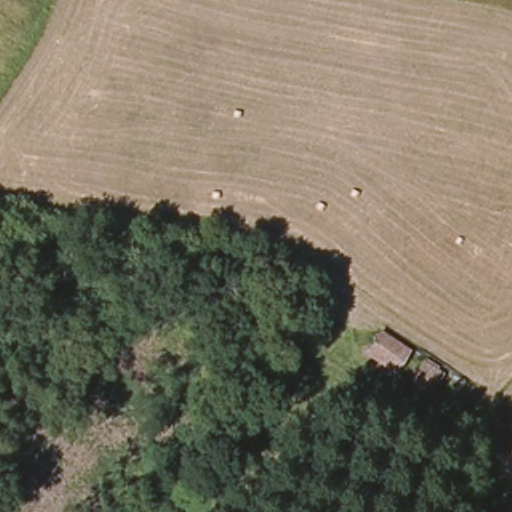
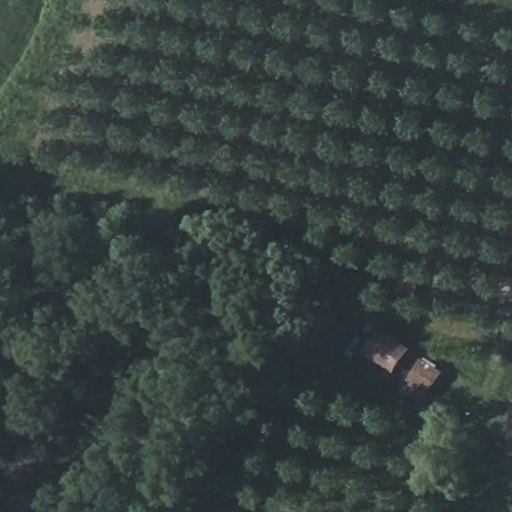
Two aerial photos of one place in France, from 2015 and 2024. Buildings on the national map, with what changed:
unchanged [(377,357),(399,335),(448,370),(433,393),(377,357)]

